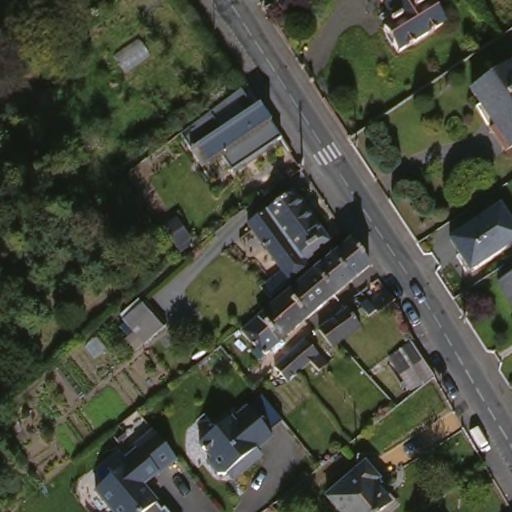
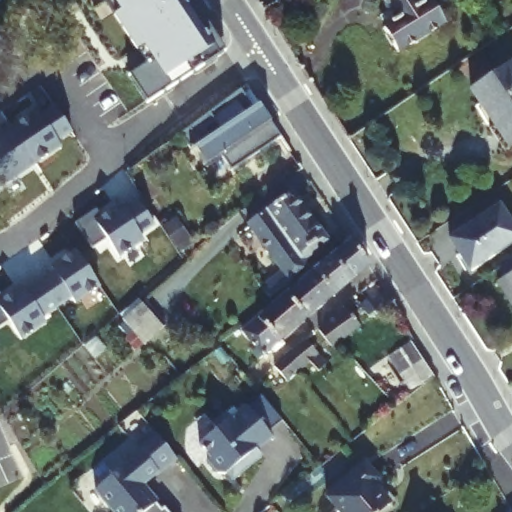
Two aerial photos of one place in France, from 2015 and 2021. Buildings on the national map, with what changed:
new [(80,0),(183,0),(201,27),(207,22),(226,50),(204,66),(156,98),(149,104),(130,77),(80,0)]
unchanged [(450,25),(405,52),(391,28),(401,22),(388,0),(435,0),(450,25)]
unchanged [(511,147),(495,122),(499,119),(487,100),(477,85),(512,62),(512,146),(511,147)]
unchanged [(244,92),(281,139),(236,166),(224,153),(206,164),(193,146),(184,132),(244,92)]
new [(12,127),(36,111),(40,117),(55,105),(73,132),(57,140),(60,146),(0,186),(0,127),(9,122),(12,127)]
unchanged [(300,189),(340,248),(276,299),(263,282),(269,278),(272,283),(289,270),(255,222),(300,189)]
new [(76,222),(96,210),(101,217),(120,204),(123,210),(138,200),(155,225),(139,234),(144,241),(120,257),(106,237),(92,247),(76,222)]
unchanged [(507,205),(512,214),(512,246),(477,270),(457,239),(507,205)]
unchanged [(293,294),(292,293),(321,269),(338,255),(356,240),(376,265),(358,280),(341,294),(313,318),(293,294)]
new [(23,287),(26,292),(56,271),(52,267),(76,251),(100,286),(76,302),(71,296),(41,316),(46,323),(20,339),(9,320),(0,325),(0,295),(4,300),(23,287)]
unchanged [(512,268),(512,283),(506,273),(512,268)]
unchanged [(505,287),(512,283),(512,298),(505,287)]
unchanged [(394,284),(403,297),(385,308),(377,296),(394,284)]
unchanged [(270,355),(249,330),(292,293),(293,294),(313,318),(270,355)]
unchanged [(383,307),(377,312),(369,301),(375,296),(383,307)]
unchanged [(170,328),(151,343),(130,319),(150,303),(170,328)]
unchanged [(353,304),(366,320),(356,328),(343,339),(339,342),(326,325),(353,304)]
unchanged [(419,333),(432,349),(412,363),(400,347),(419,333)]
unchanged [(322,371),(311,361),(296,373),(288,379),(277,366),(306,340),(321,354),(330,362),(322,371)]
unchanged [(274,437),(259,450),(262,455),(235,477),(230,471),(227,475),(220,474),(209,461),(212,458),(201,444),(218,430),(215,425),(228,414),(234,420),(249,407),(274,437)]
unchanged [(120,460),(151,429),(179,457),(146,486),(156,505),(166,505),(171,512),(115,512),(98,488),(124,466),(120,460)]
unchanged [(385,474),(381,478),(398,497),(381,512),(352,512),(335,491),(372,459),(385,474)]

